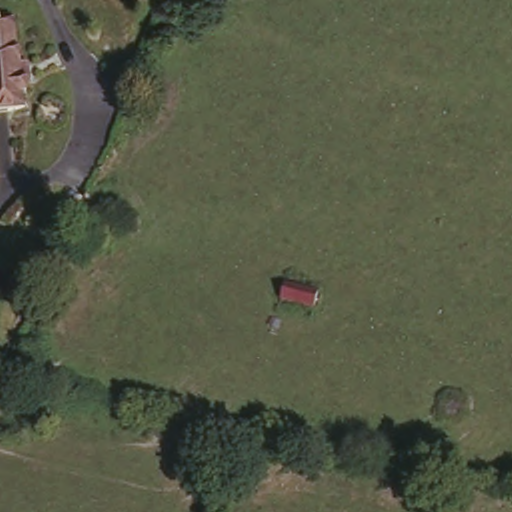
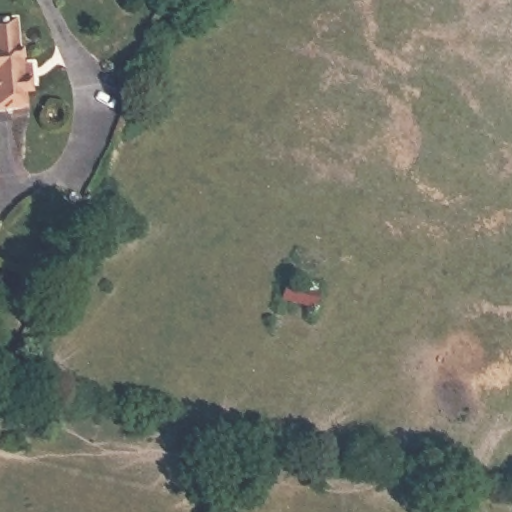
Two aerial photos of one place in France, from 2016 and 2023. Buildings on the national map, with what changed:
unchanged [(9,26),(11,56),(14,56),(15,71),(24,70),(26,87),(22,87),(22,98),(17,98),(19,111),(0,114),(0,27),(9,26)]
unchanged [(285,283),(318,292),(315,308),(281,299),(285,283)]

